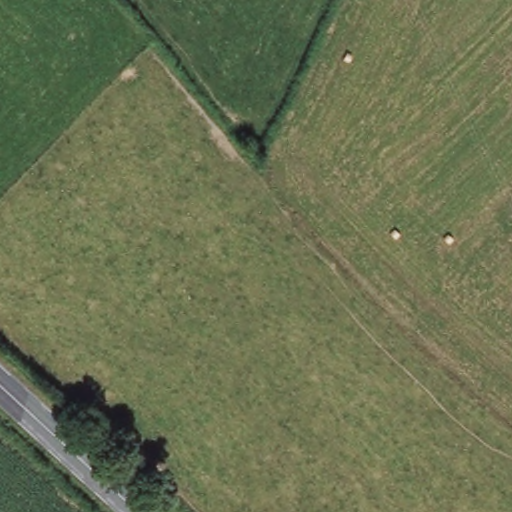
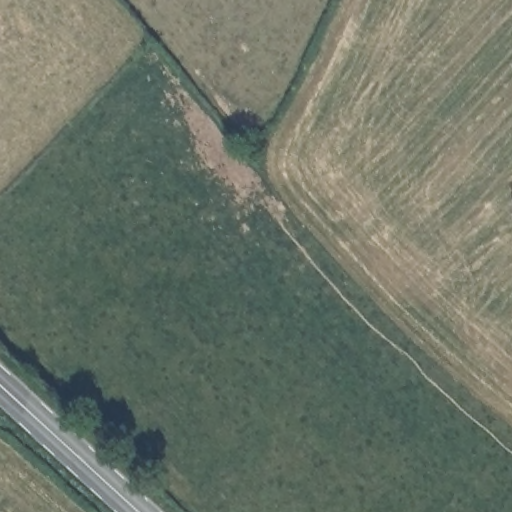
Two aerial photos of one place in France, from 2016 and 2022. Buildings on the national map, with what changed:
[]

